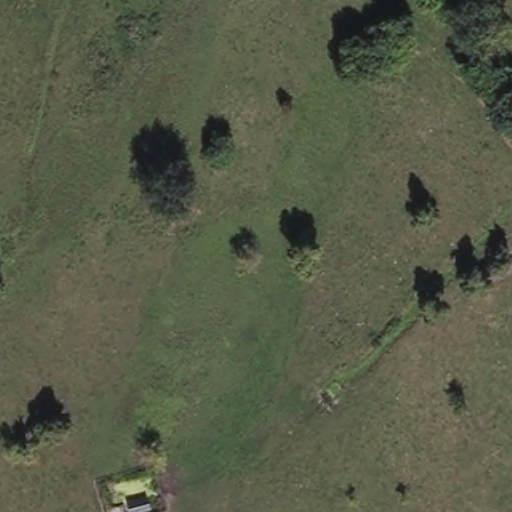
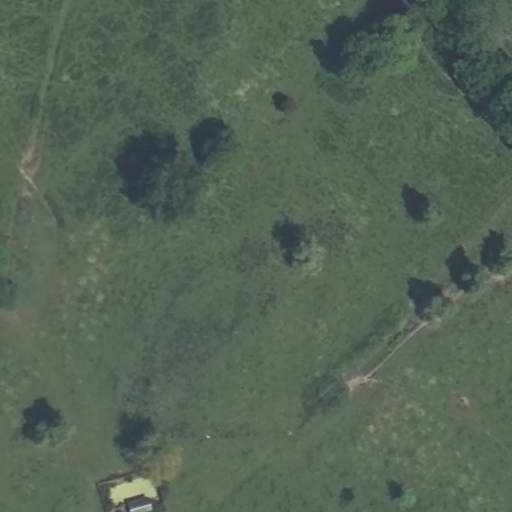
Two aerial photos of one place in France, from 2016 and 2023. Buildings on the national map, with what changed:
unchanged [(147,508),(138,512),(129,512),(127,505),(144,498),(147,508)]

